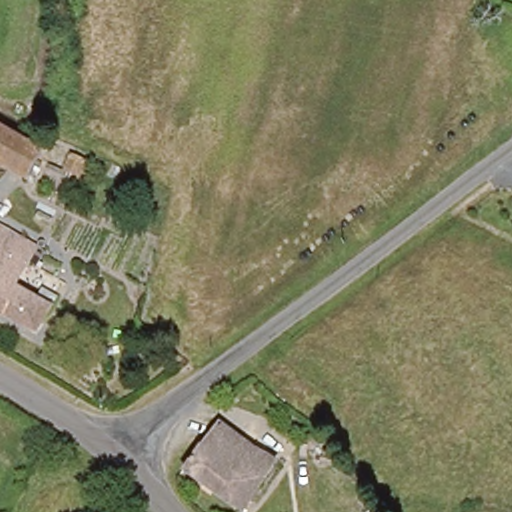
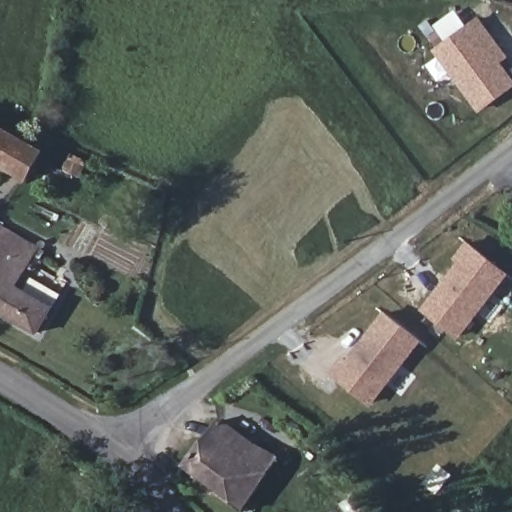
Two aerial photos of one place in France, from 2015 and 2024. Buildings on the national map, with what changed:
new [(506,57),(498,63),(512,82),(512,87),(476,112),(431,52),(477,18),(506,57)]
unchanged [(0,159),(0,128),(40,149),(26,174),(0,159)]
unchanged [(0,310),(0,218),(32,236),(30,242),(40,251),(20,287),(55,306),(40,332),(0,310)]
new [(455,262),(450,260),(464,243),(506,275),(456,339),(417,309),(455,262)]
new [(341,356),(345,360),(381,311),(420,339),(371,406),(326,374),(341,356)]
demolished [(258,385),(272,355),(341,389),(326,418),(258,385)]
unchanged [(255,507),(241,498),(234,508),(185,474),(224,419),(240,430),(238,433),(281,467),(255,507)]

